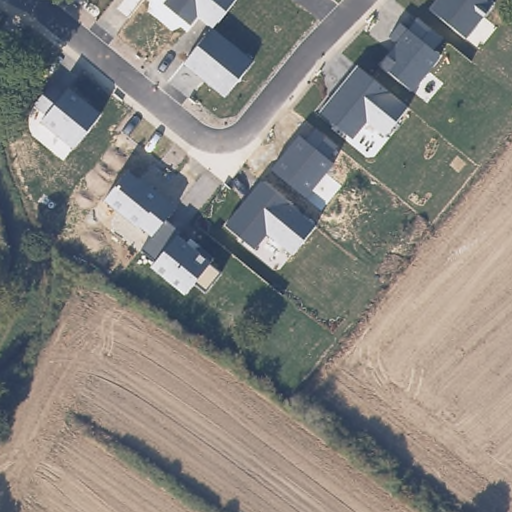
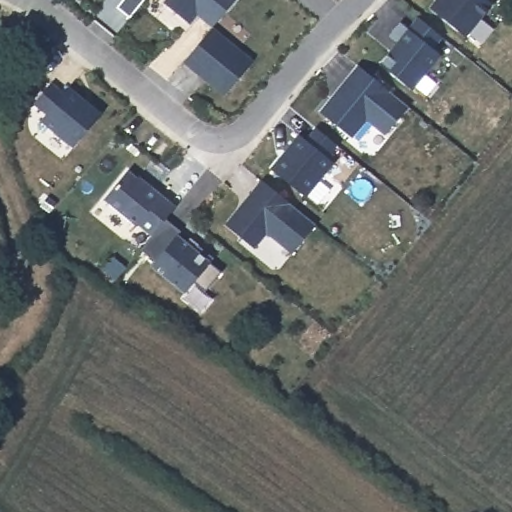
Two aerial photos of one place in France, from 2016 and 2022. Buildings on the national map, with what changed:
unchanged [(119,8),(125,0),(144,0),(131,18),(119,8)]
unchanged [(196,16),(191,24),(166,5),(169,0),(235,0),(211,28),(196,16)]
unchanged [(494,4),(466,39),(431,8),(437,0),(491,0),(494,4)]
unchanged [(412,90),(381,62),(397,42),(390,37),(400,24),(407,30),(417,19),(442,40),(434,52),(440,58),(412,90)]
unchanged [(254,60),(226,96),(184,64),(214,29),(254,60)]
unchanged [(357,66),(407,108),(386,134),(367,121),(352,139),(320,113),(357,66)]
unchanged [(101,114),(72,148),(42,123),(48,114),(36,106),(52,83),(65,92),(69,88),(101,114)]
unchanged [(300,137),(303,140),(313,129),(336,148),(327,159),(333,164),(307,197),(272,169),(300,137)]
unchanged [(176,208),(164,220),(181,233),(179,235),(222,272),(206,290),(194,281),(184,293),(152,267),(158,259),(142,249),(154,235),(139,226),(137,228),(104,200),(127,170),(176,208)]
unchanged [(261,181),(316,225),(292,253),(267,233),(255,248),(226,224),(261,181)]

